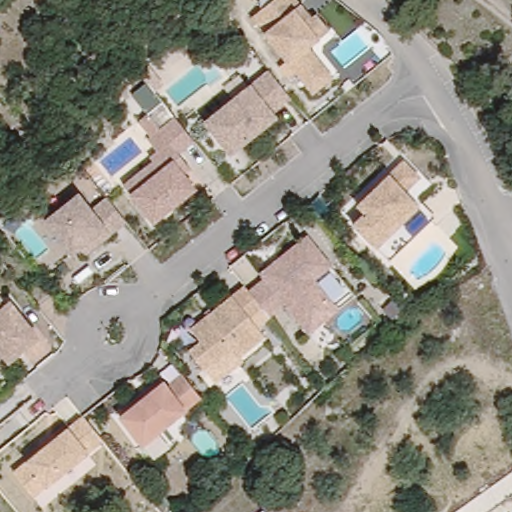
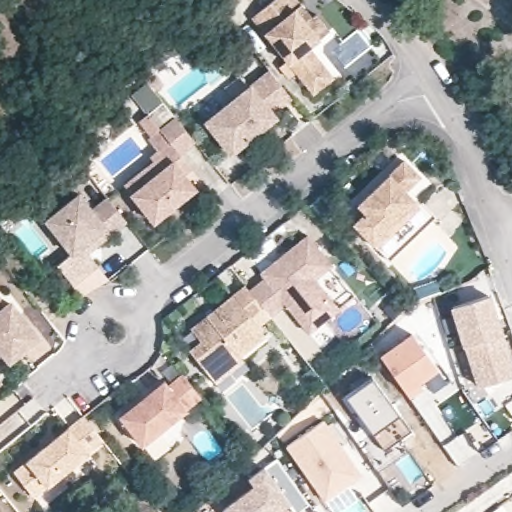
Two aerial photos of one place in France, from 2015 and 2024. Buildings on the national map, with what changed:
unchanged [(318,89),(307,76),(259,16),(256,13),(273,0),(305,0),(305,1),(316,13),(320,9),(334,26),(314,42),(327,59),(338,72),(318,89)]
unchanged [(291,94),(272,109),(275,112),(230,149),(205,118),(269,66),(291,94)]
unchanged [(158,157),(155,154),(162,147),(153,136),(164,127),(152,111),(168,97),(194,130),(199,137),(183,149),(189,156),(182,162),(199,184),(157,217),(135,191),(128,182),(158,157)]
unchanged [(437,216),(394,257),(358,220),(370,209),(362,201),(408,157),(424,173),(410,187),(424,202),(427,199),(441,212),(437,216)]
unchanged [(81,242),(72,250),(45,217),(78,190),(92,206),(107,194),(126,217),(97,241),(86,249),(81,242)]
unchanged [(343,304),(313,328),(289,298),(274,311),(266,301),(254,287),(270,274),(265,268),(312,231),(336,261),(360,291),(343,304)]
unchanged [(254,287),(266,301),(253,312),(269,331),(243,352),(236,343),(209,365),(194,347),(206,337),(196,325),(250,282),(254,287)]
unchanged [(12,302),(15,299),(42,333),(15,356),(0,337),(0,287),(12,302)]
new [(512,357),(512,374),(476,387),(448,307),(490,295),(512,357)]
new [(412,333),(437,371),(419,382),(424,390),(411,400),(403,392),(380,357),(412,333)]
unchanged [(206,393),(147,441),(124,412),(168,377),(172,382),(187,370),(206,393)]
new [(373,380),(399,415),(410,430),(384,449),(371,433),(346,397),(373,380)]
unchanged [(107,435),(38,491),(19,467),(48,443),(52,447),(59,442),(56,437),(88,412),(107,435)]
new [(324,421),(361,476),(325,502),(287,448),(324,421)]
new [(249,480),(265,467),(276,459),(307,505),(298,512),(293,512),(287,505),(277,512),(225,512),(223,509),(254,487),(249,480)]
unchanged [(1,512),(0,512),(0,511),(1,512)]

